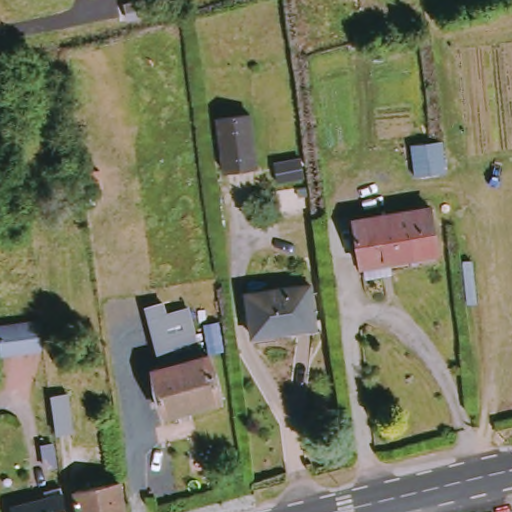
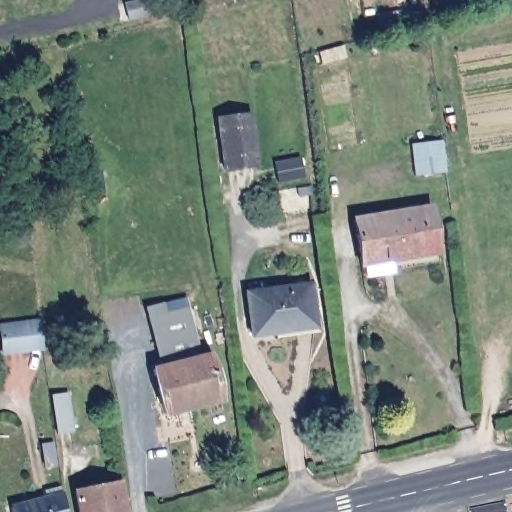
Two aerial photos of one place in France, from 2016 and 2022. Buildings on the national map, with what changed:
unchanged [(138,0),(151,0),(154,12),(120,20),(117,5),(138,0)]
unchanged [(266,165),(223,172),(214,120),(257,113),(266,165)]
unchanged [(435,205),(442,256),(365,268),(357,217),(435,205)]
unchanged [(320,322),(295,326),(293,333),(255,339),(248,298),(313,286),(320,322)]
unchanged [(144,308),(164,302),(165,313),(190,307),(204,362),(160,373),(144,308)]
unchanged [(44,323),(49,351),(7,355),(5,330),(44,323)]
unchanged [(225,404),(172,417),(160,373),(212,359),(225,404)]
unchanged [(50,389),(70,387),(76,427),(57,429),(50,389)]
unchanged [(84,512),(79,493),(121,485),(126,512),(84,512)]
unchanged [(19,512),(18,509),(62,498),(64,512),(19,512)]

